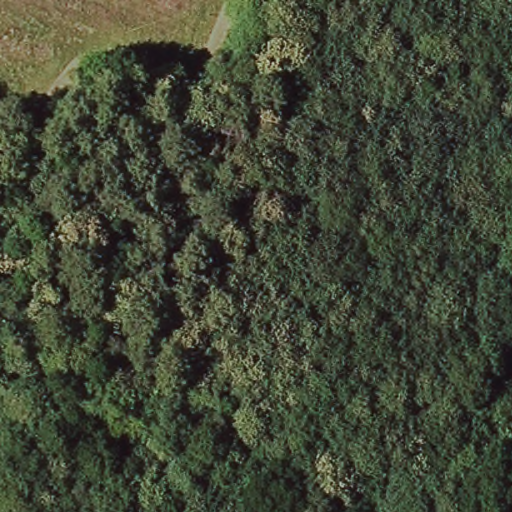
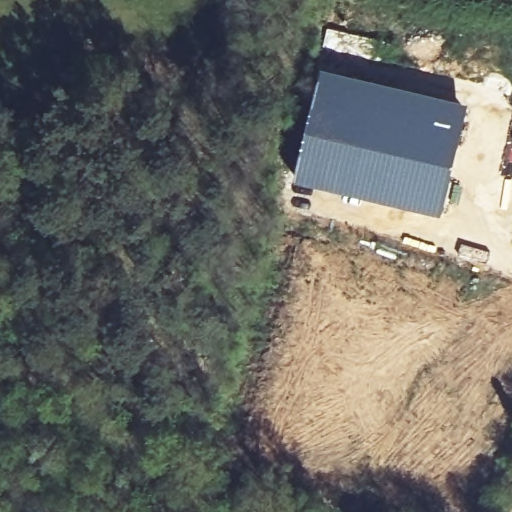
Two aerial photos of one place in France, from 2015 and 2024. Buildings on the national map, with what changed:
new [(322,63),(470,100),(442,214),(383,201),(295,176),(322,63)]

